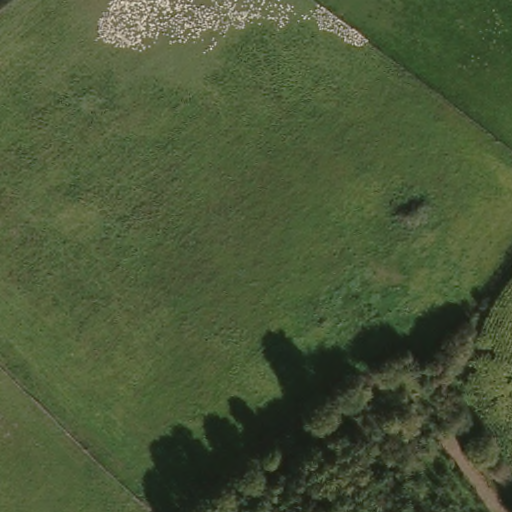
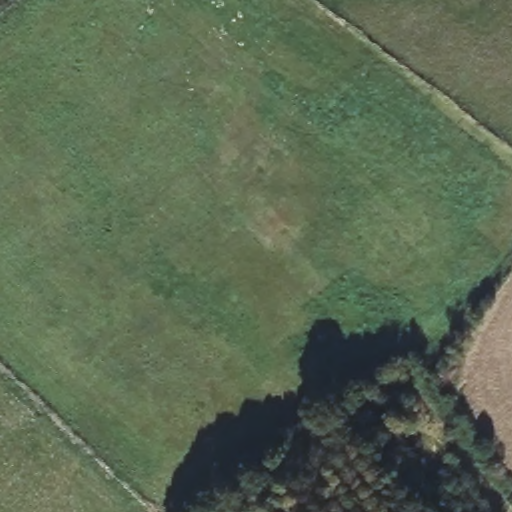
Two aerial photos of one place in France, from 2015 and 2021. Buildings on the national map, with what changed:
[]

